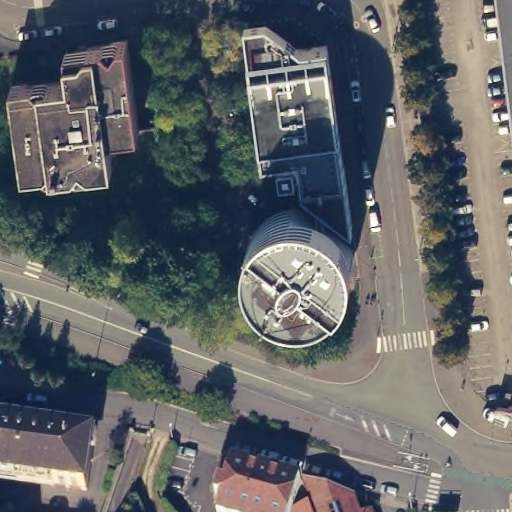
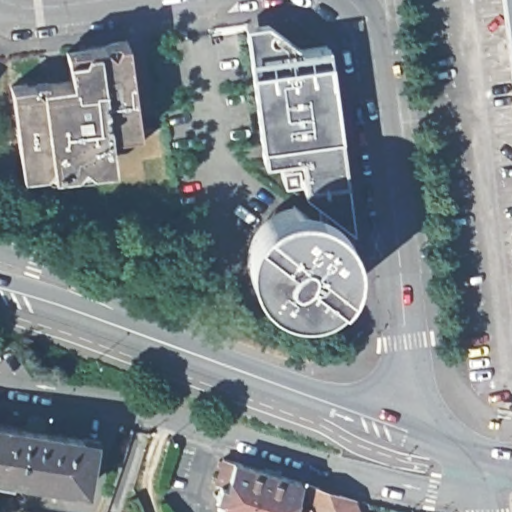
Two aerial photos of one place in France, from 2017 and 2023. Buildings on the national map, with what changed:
unchanged [(512,0),(512,72),(503,0),(512,0)]
unchanged [(270,17),(305,46),(333,41),(351,221),(302,178),(282,181),(277,159),(264,160),(245,21),(270,17)]
unchanged [(140,126),(132,127),(123,121),(116,129),(110,130),(113,152),(106,161),(91,162),(83,156),(76,165),(61,167),(53,160),(46,169),(23,172),(11,81),(28,79),(28,82),(70,76),(66,46),(111,40),(111,37),(122,36),(127,35),(140,126)]
unchanged [(265,211),(288,203),(312,201),(328,206),(340,217),(349,232),(353,258),(346,291),(331,305),(308,311),(284,308),(268,296),(252,277),(248,257),(251,225),(265,211)]
unchanged [(91,488),(0,474),(0,424),(99,440),(91,488)]
unchanged [(218,510),(222,495),(216,493),(220,479),(216,478),(223,453),(234,456),(301,476),(292,503),(298,505),(302,512),(225,512),(218,510)]
unchanged [(303,477),(355,495),(361,512),(315,512),(303,477)]

